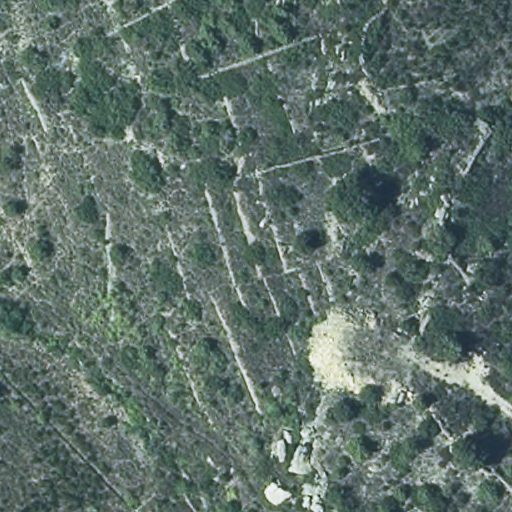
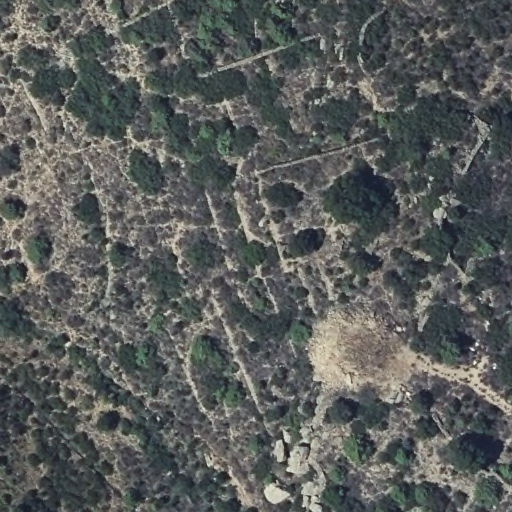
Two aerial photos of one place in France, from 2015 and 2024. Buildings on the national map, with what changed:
unchanged [(295,438),(310,442),(304,460),(291,454),(295,438)]

